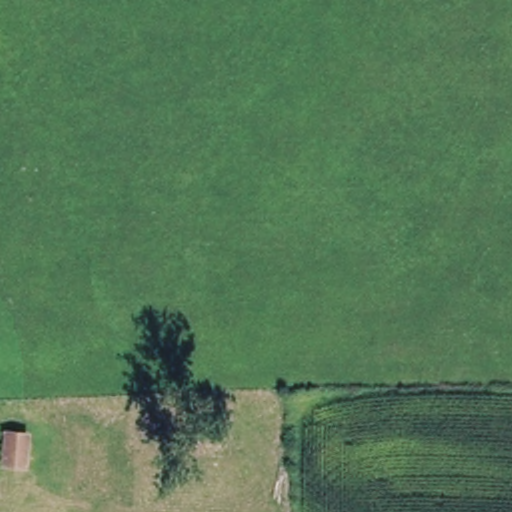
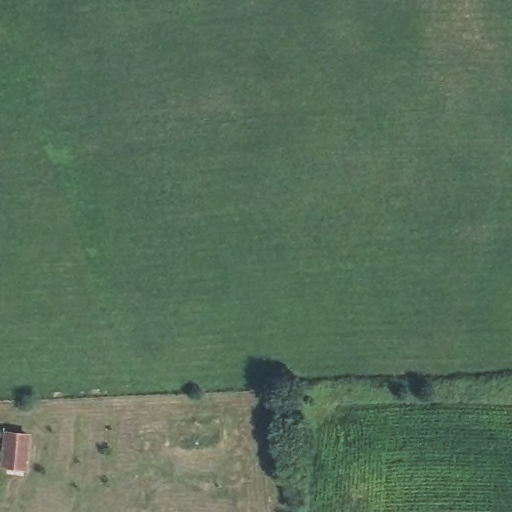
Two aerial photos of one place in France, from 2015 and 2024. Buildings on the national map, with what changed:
unchanged [(34,429),(30,461),(0,457),(0,453),(4,425),(34,429)]

